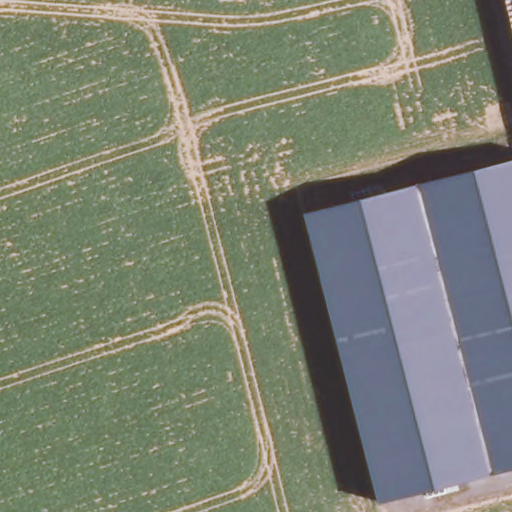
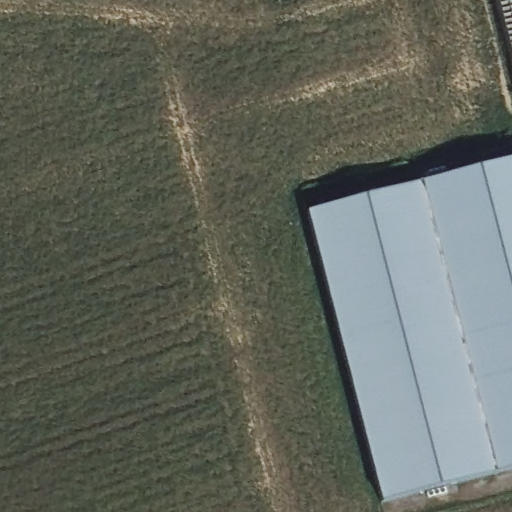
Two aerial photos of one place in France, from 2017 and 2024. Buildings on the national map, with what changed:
unchanged [(512,157),(512,469),(379,502),(306,209),(512,157)]

